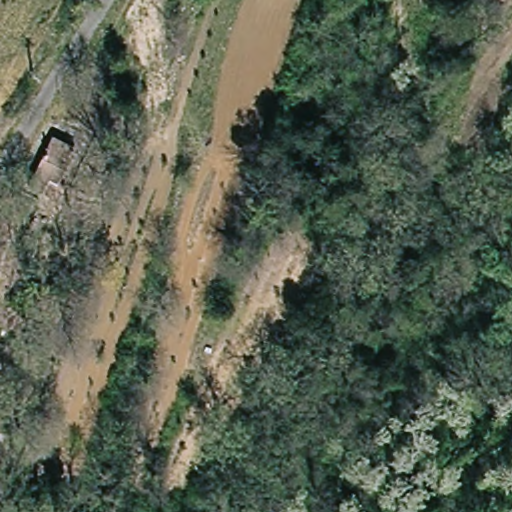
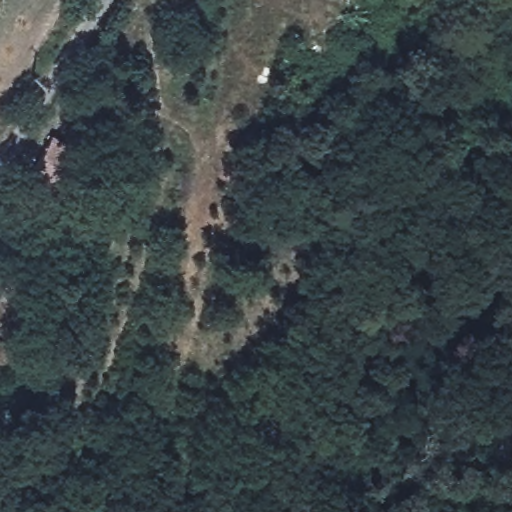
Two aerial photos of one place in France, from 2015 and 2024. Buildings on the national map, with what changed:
unchanged [(77,150),(62,177),(39,167),(52,138),(77,150)]

